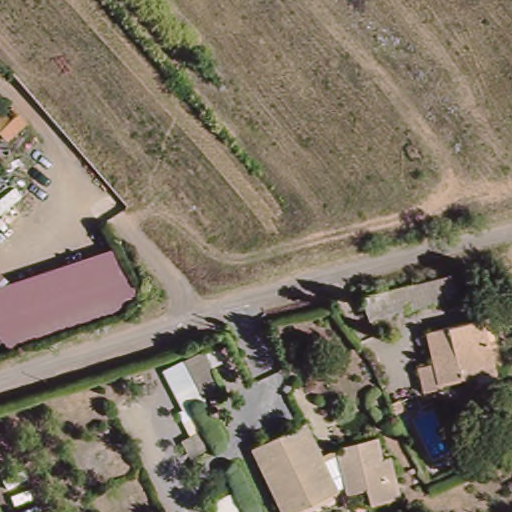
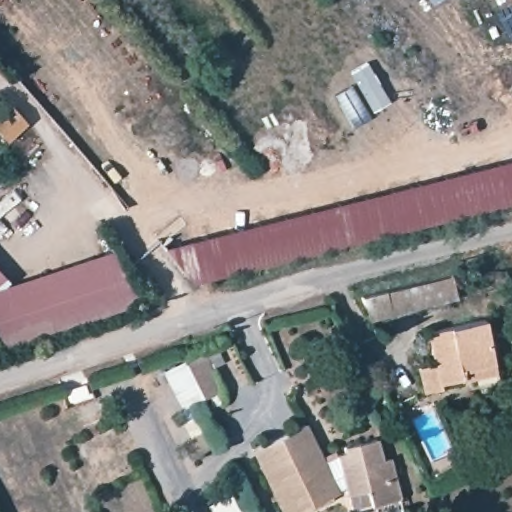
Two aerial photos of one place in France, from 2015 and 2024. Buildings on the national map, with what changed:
new [(347,74),(367,61),(390,101),(371,113),(347,74)]
unchanged [(31,128),(15,142),(0,125),(17,110),(31,128)]
new [(162,247),(512,159),(512,202),(191,282),(162,247)]
unchanged [(0,338),(0,286),(106,252),(127,294),(4,343),(0,338)]
unchanged [(453,297),(453,301),(368,322),(364,298),(449,276),(453,297)]
unchanged [(496,375),(442,387),(443,392),(427,395),(423,371),(438,368),(432,335),(486,325),(496,375)]
unchanged [(209,348),(230,390),(205,400),(185,362),(209,348)]
unchanged [(399,500),(383,504),(368,479),(349,486),(344,479),(336,483),(336,487),(290,512),(280,512),(248,453),(301,426),(328,458),(346,446),(377,443),(388,462),(393,460),(399,500)]
new [(208,505),(231,494),(240,512),(211,512),(208,505)]

